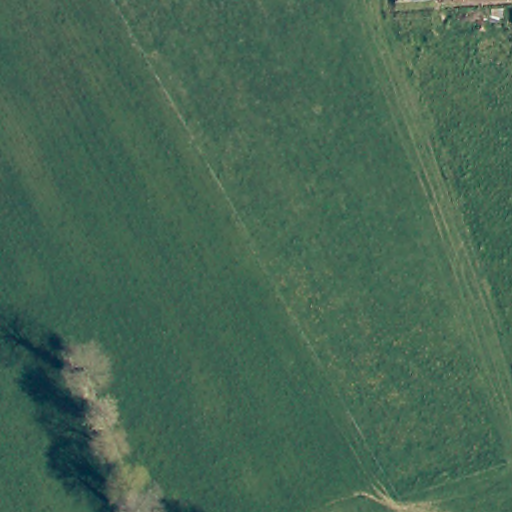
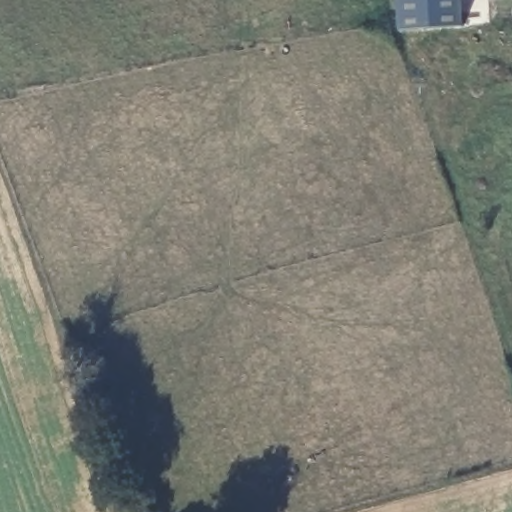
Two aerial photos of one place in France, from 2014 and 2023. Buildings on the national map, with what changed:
demolished [(392,9),(392,0),(431,0),(431,5),(392,9)]
new [(399,32),(398,0),(461,0),(462,27),(399,32)]

